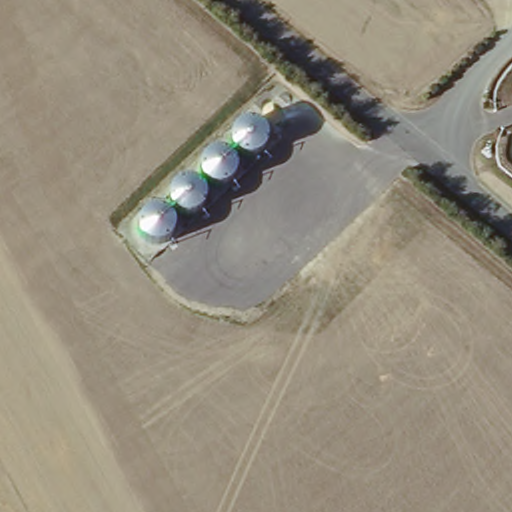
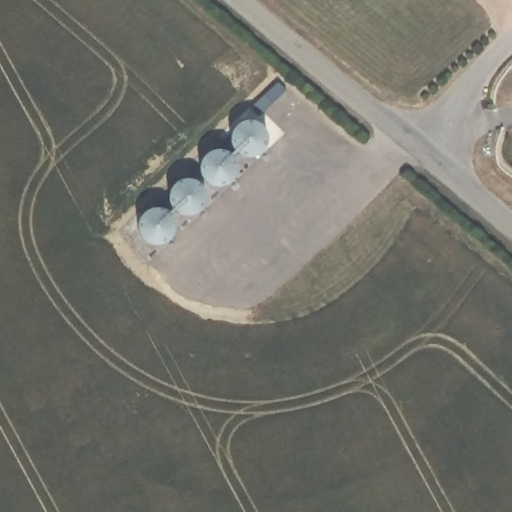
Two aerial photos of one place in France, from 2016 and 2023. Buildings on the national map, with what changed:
unchanged [(272,139),(153,249),(134,227),(132,226),(251,115),(272,139)]

